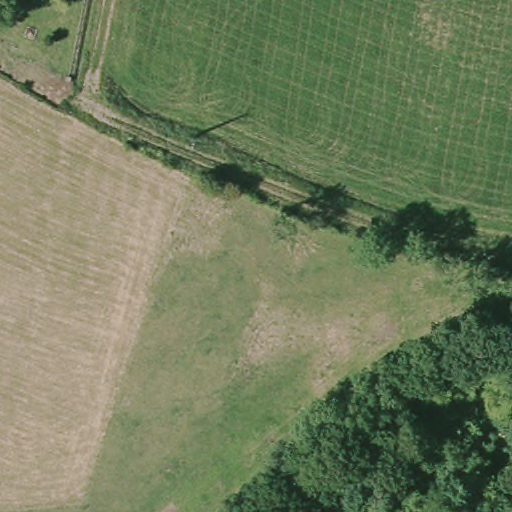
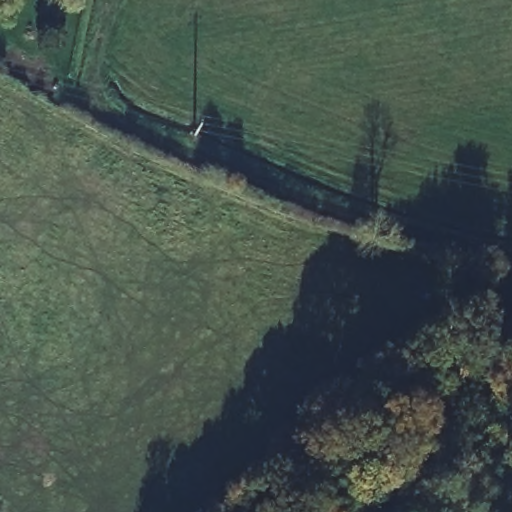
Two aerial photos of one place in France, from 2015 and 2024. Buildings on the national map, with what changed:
[]

